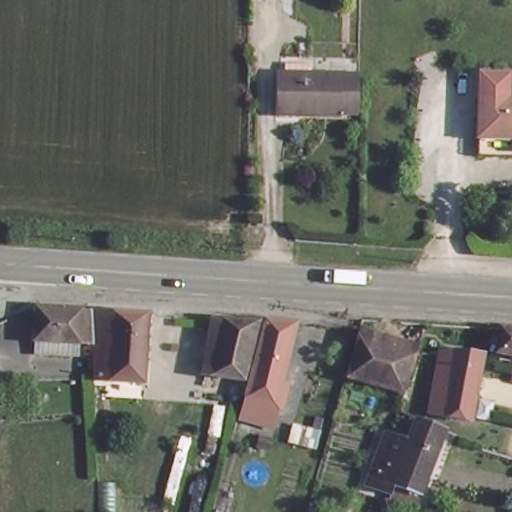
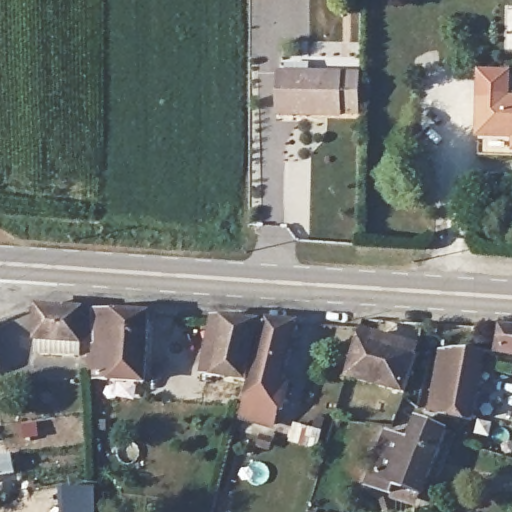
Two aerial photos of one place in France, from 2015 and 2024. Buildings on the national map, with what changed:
unchanged [(302,113),(303,109),(275,107),(275,72),(356,75),(355,113),(302,113)]
unchanged [(512,74),(512,96),(483,96),(484,72),(512,74)]
unchanged [(483,96),(512,96),(512,157),(482,155),(483,96)]
unchanged [(94,334),(41,331),(42,304),(91,307),(94,334)]
unchanged [(155,311),(145,371),(97,367),(94,334),(91,307),(155,311)]
unchanged [(245,380),(203,375),(209,320),(254,322),(245,380)]
unchanged [(292,325),(278,420),(240,416),(245,380),(254,322),(292,325)]
unchanged [(501,350),(503,323),(512,324),(512,351),(501,350)]
unchanged [(359,331),(419,345),(409,382),(350,370),(359,331)]
unchanged [(442,347),(480,351),(473,418),(454,417),(454,410),(435,409),(442,347)]
unchanged [(2,368),(0,369),(0,364),(2,368)]
unchanged [(441,426),(416,487),(397,481),(392,488),(365,478),(382,432),(406,441),(416,417),(441,426)]
new [(11,452),(15,475),(0,477),(0,455),(11,452)]
new [(96,512),(58,512),(58,483),(95,482),(96,512)]
unchanged [(306,512),(307,511),(312,512),(306,512)]

